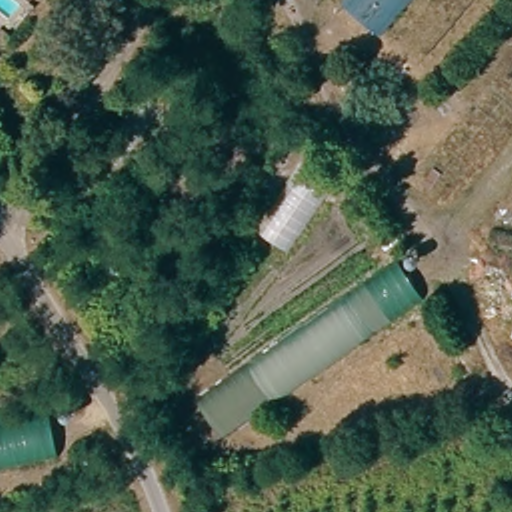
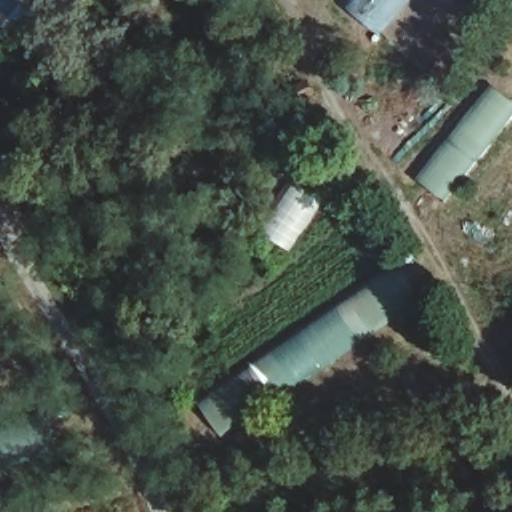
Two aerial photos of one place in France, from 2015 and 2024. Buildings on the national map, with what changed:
unchanged [(84,2),(81,0),(86,0),(84,2)]
unchanged [(389,10),(379,0),(398,0),(389,10)]
new [(497,88),(509,97),(498,120),(503,123),(443,198),(422,181),(497,88)]
unchanged [(200,400),(371,279),(392,265),(414,297),(385,318),(223,433),(200,400)]
unchanged [(39,452),(0,459),(0,419),(33,413),(39,452)]

